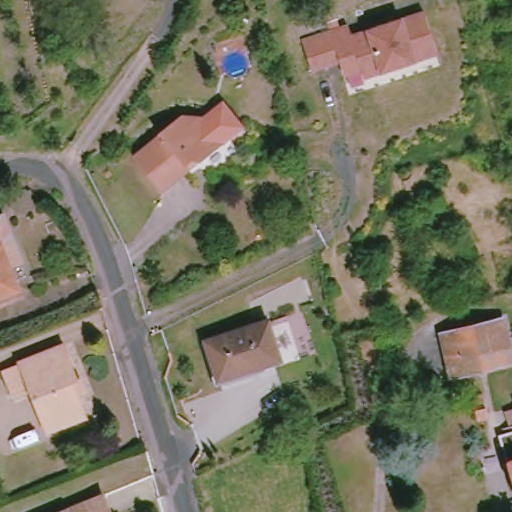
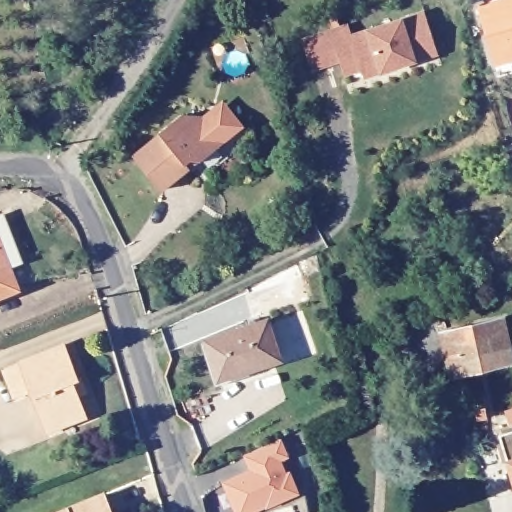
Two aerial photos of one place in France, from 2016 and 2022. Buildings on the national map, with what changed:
new [(486,6),(506,0),(512,0),(512,60),(503,63),(486,6)]
unchanged [(364,78),(361,69),(344,75),(339,61),(311,72),(301,43),(330,32),(346,26),(348,31),(351,37),(423,11),(437,52),(413,60),(398,65),(364,78)]
unchanged [(188,159),(183,164),(185,166),(158,189),(130,155),(156,133),(155,130),(175,114),(198,116),(201,120),(219,139),(213,144),(197,159),(188,159)]
unchanged [(8,268),(16,288),(0,294),(0,221),(14,254),(18,263),(8,268)]
unchanged [(442,332),(504,318),(512,353),(512,362),(451,377),(442,332)]
unchanged [(220,379),(209,340),(270,321),(281,360),(220,379)]
unchanged [(73,379),(66,383),(79,417),(43,432),(27,391),(10,398),(0,373),(0,370),(59,347),(73,379)]
unchanged [(479,420),(474,396),(485,394),(489,418),(479,420)]
new [(257,512),(235,512),(222,483),(250,470),(244,457),(283,439),(290,458),(282,461),(287,472),(292,472),(300,494),(257,512)]
unchanged [(99,501),(104,512),(70,512),(99,501)]

